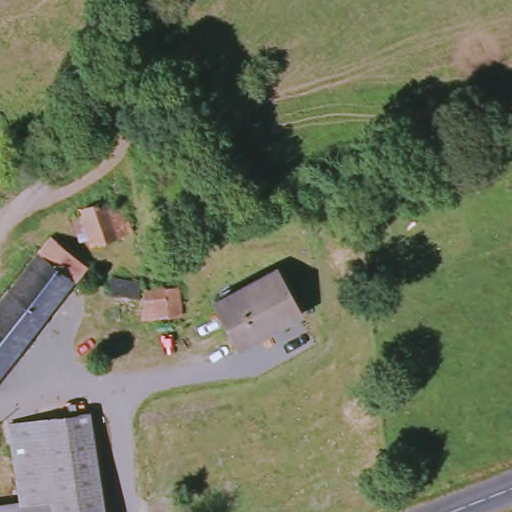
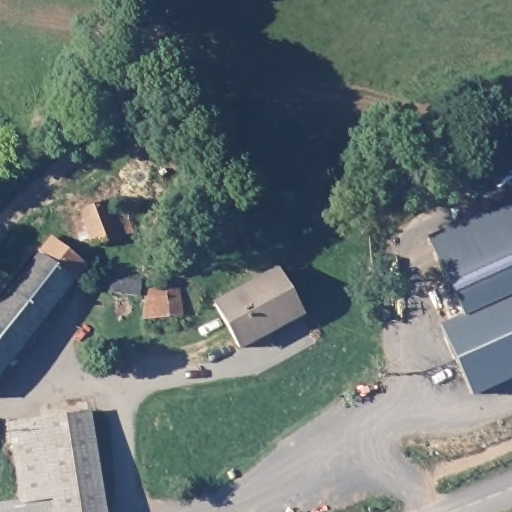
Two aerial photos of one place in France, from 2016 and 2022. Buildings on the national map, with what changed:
new [(440,325),(463,315),(429,236),(512,199),(512,380),(472,398),(440,325)]
unchanged [(112,210),(127,205),(140,236),(98,251),(95,243),(82,248),(74,226),(85,222),(81,211),(108,200),(112,210)]
unchanged [(49,235),(86,263),(71,283),(34,256),(49,235)]
unchanged [(71,283),(0,379),(0,302),(34,256),(71,283)]
unchanged [(278,268),(305,315),(242,350),(216,304),(278,268)]
unchanged [(142,279),(139,297),(110,293),(114,275),(142,279)]
unchanged [(13,418),(90,407),(105,512),(0,512),(0,504),(25,500),(13,418)]

